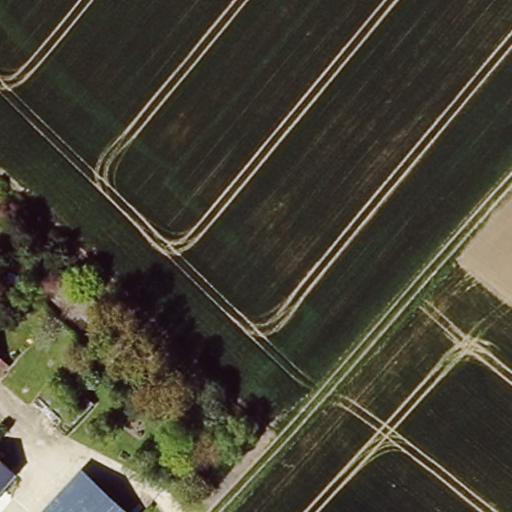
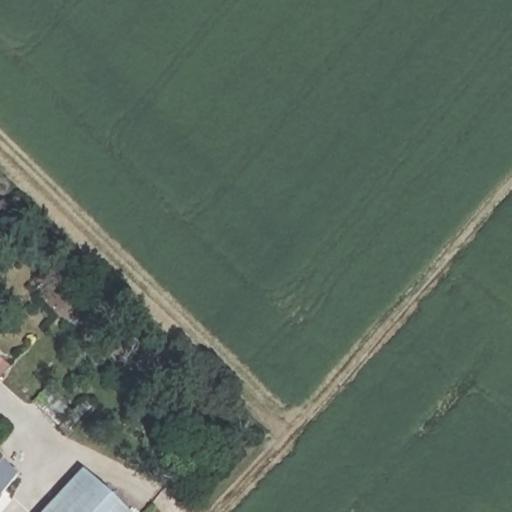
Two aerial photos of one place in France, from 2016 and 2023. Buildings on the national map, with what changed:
unchanged [(14,355),(3,368),(0,366),(0,344),(14,355)]
unchanged [(0,493),(0,466),(13,479),(0,493)]
unchanged [(41,512),(79,474),(114,512),(41,512)]

